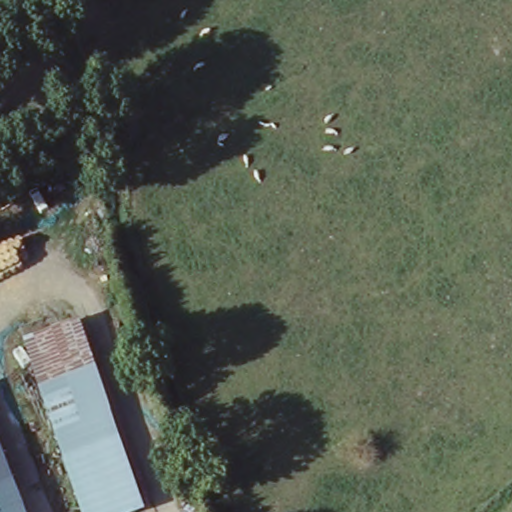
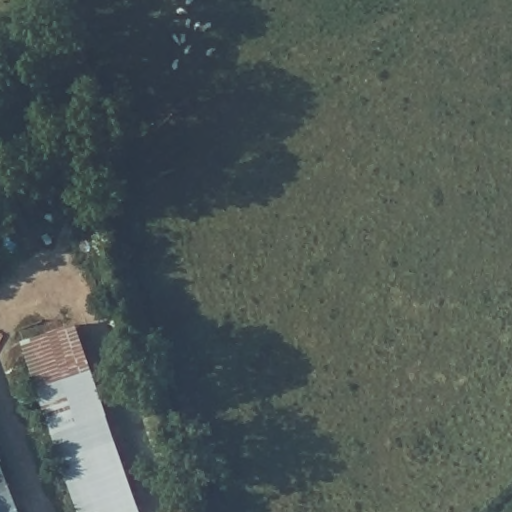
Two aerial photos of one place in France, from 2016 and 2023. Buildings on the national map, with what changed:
unchanged [(35,390),(25,348),(80,328),(95,371),(35,390)]
unchanged [(95,371),(143,512),(79,512),(35,390),(95,371)]
unchanged [(28,512),(0,512),(0,439),(28,512)]

